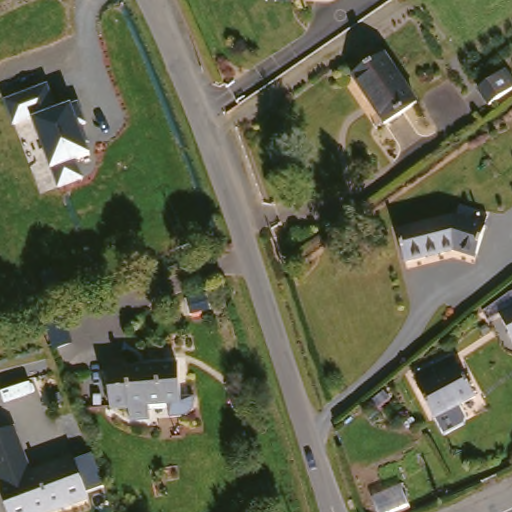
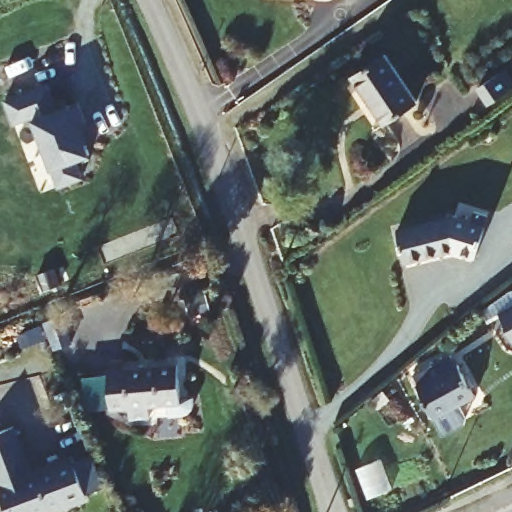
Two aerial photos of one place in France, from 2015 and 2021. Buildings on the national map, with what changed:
unchanged [(411,106),(378,129),(346,81),(377,59),(411,106)]
unchanged [(512,82),(512,88),(491,102),(483,88),(506,72),(512,82)]
unchanged [(48,83),(59,108),(71,103),(78,102),(85,122),(79,123),(89,155),(76,161),(81,177),(56,186),(51,169),(33,120),(31,116),(13,121),(6,98),(48,83)]
unchanged [(457,221),(481,226),(474,257),(450,254),(406,262),(401,234),(457,221)]
unchanged [(511,331),(495,303),(512,294),(512,331),(511,331)]
unchanged [(65,317),(74,341),(57,348),(48,324),(65,317)]
unchanged [(409,396),(411,394),(406,385),(443,365),(448,375),(451,374),(468,405),(426,429),(409,396)]
unchanged [(138,425),(123,426),(121,414),(103,415),(101,375),(173,371),(174,404),(188,403),(189,415),(184,420),(164,421),(164,412),(137,413),(138,425)]
unchanged [(3,512),(0,503),(0,430),(11,427),(27,474),(70,460),(84,501),(49,512),(3,512)]

